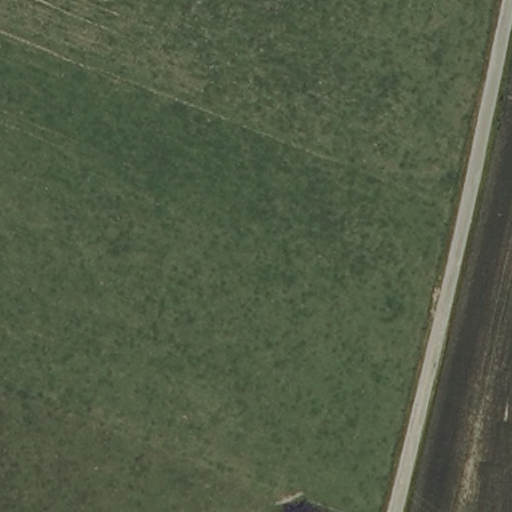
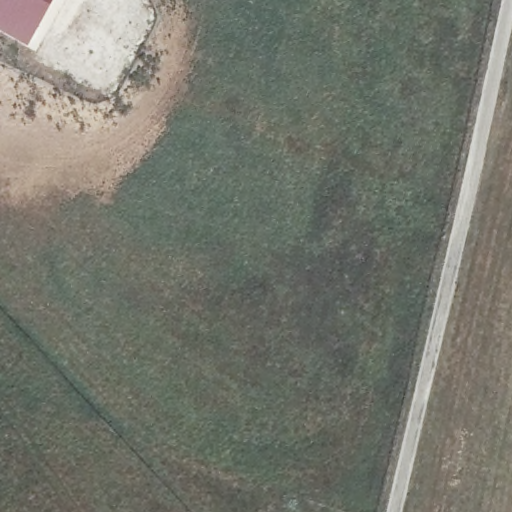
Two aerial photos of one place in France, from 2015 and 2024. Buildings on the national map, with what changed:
new [(0,33),(0,0),(51,0),(25,47),(0,33)]

